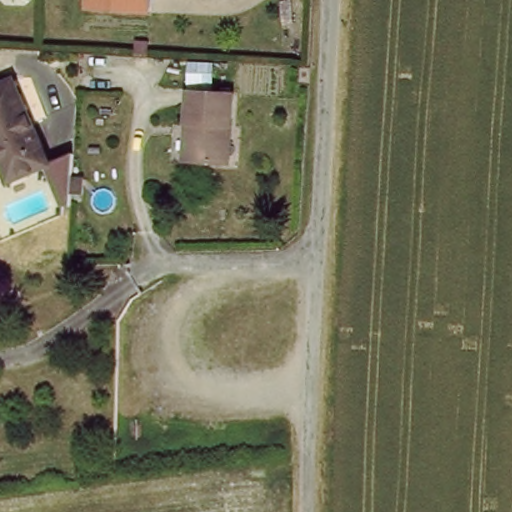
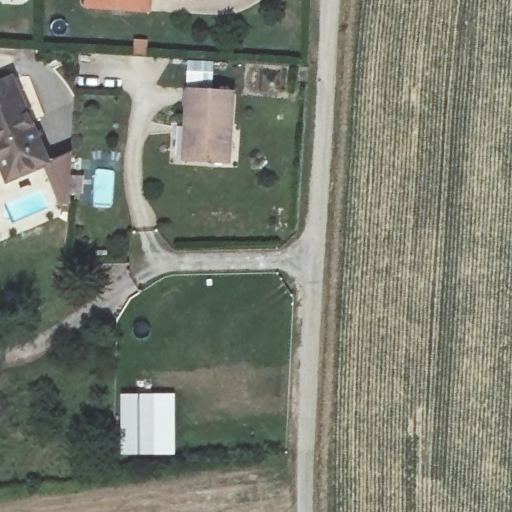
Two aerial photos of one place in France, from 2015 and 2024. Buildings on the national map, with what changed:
unchanged [(83,6),(84,0),(146,0),(145,13),(83,6)]
unchanged [(52,160),(12,179),(0,151),(0,83),(15,76),(52,160)]
unchanged [(187,88),(230,91),(227,124),(230,125),(227,161),(185,155),(187,88)]
new [(118,394),(175,392),(175,455),(118,455),(118,394)]

